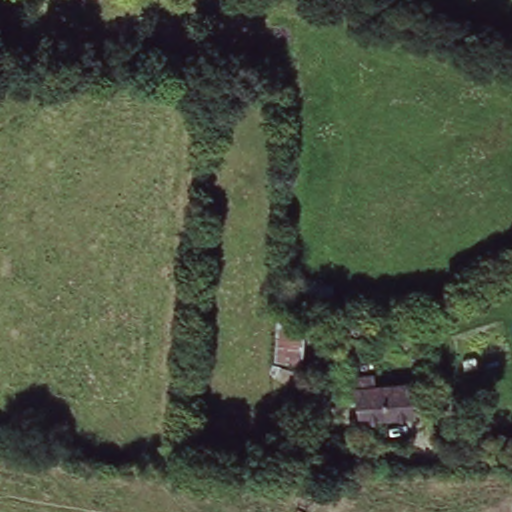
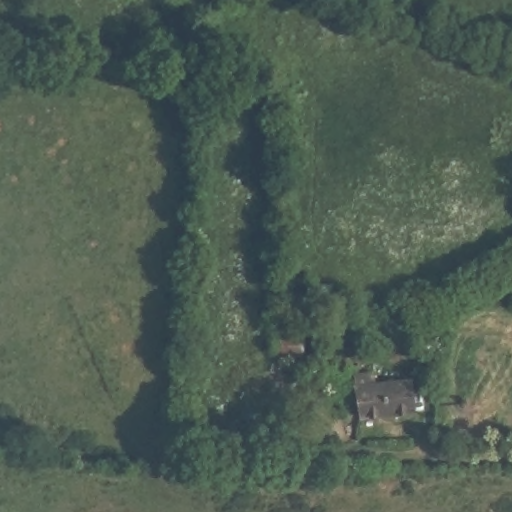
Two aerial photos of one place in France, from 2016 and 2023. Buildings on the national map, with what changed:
unchanged [(273,328),(300,326),(304,362),(274,365),(273,328)]
unchanged [(412,418),(361,426),(358,400),(355,383),(370,382),(373,397),(409,390),(412,418)]

